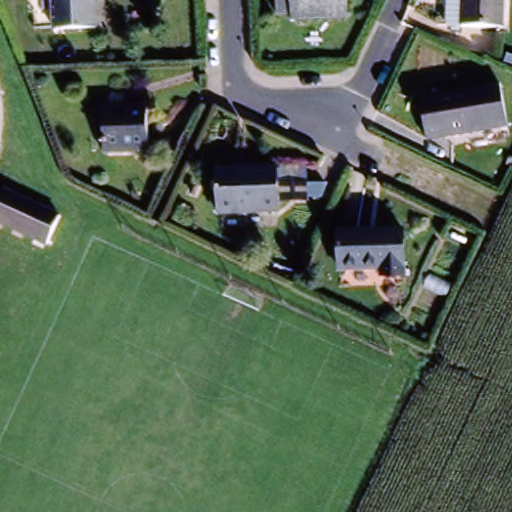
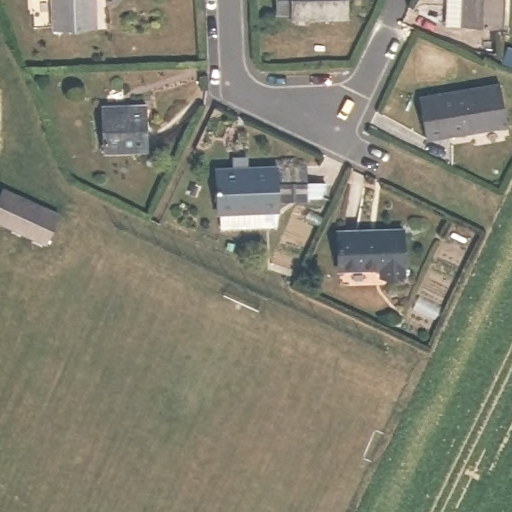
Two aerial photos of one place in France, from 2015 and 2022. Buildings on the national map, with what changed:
unchanged [(49,0),(90,0),(90,24),(49,24),(49,0)]
unchanged [(346,14),(290,14),(290,7),(274,7),(275,0),(346,0),(346,14)]
unchanged [(456,0),(508,0),(508,25),(474,25),(456,26),(456,0)]
unchanged [(421,97),(442,96),(499,94),(501,135),(443,137),(422,138),(421,97)]
unchanged [(127,106),(127,100),(148,100),(148,151),(100,151),(99,107),(127,106)]
unchanged [(234,169),(234,159),(247,158),(247,169),(275,168),(276,211),(217,212),(216,169),(234,169)]
unchanged [(304,198),(283,198),(283,185),(305,185),(304,198)]
unchanged [(45,229),(4,208),(14,190),(55,210),(45,229)]
unchanged [(401,227),(400,272),(376,271),(376,264),(336,264),(336,227),(401,227)]

